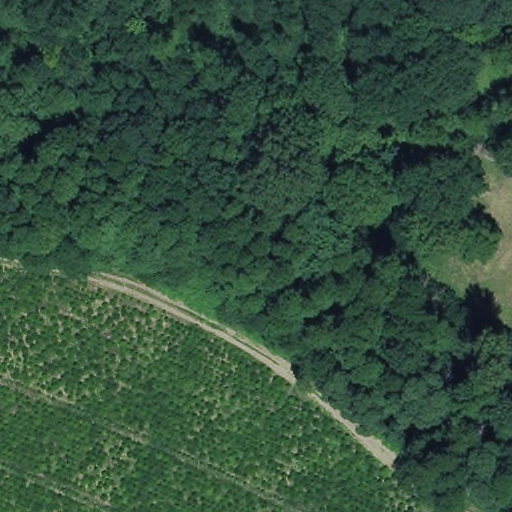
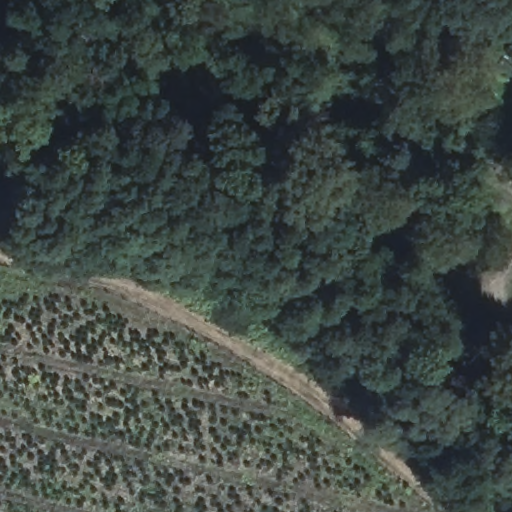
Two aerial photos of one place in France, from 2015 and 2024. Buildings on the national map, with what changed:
unchanged [(504,134),(490,168),(456,152),(469,118),(504,134)]

